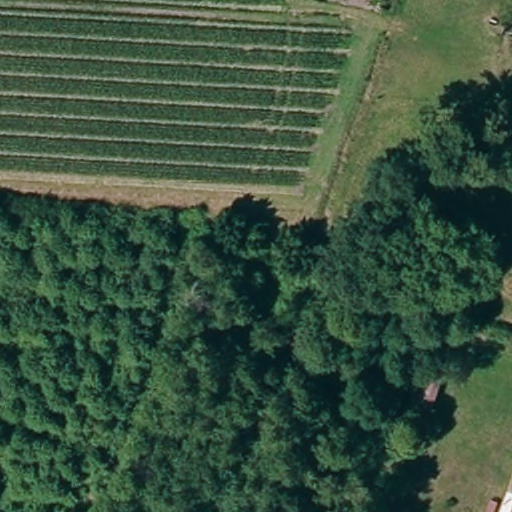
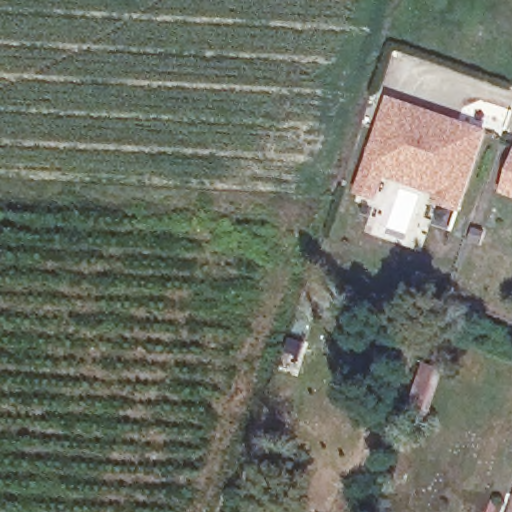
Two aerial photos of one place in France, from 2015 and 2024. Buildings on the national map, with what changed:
new [(488,130),(461,211),(432,203),(437,193),(385,176),(377,199),(353,193),(387,95),(488,130)]
new [(499,192),(512,156),(512,197),(499,192)]
unchanged [(405,407),(417,359),(444,366),(428,415),(405,407)]
unchanged [(508,512),(512,503),(512,512),(508,512)]

